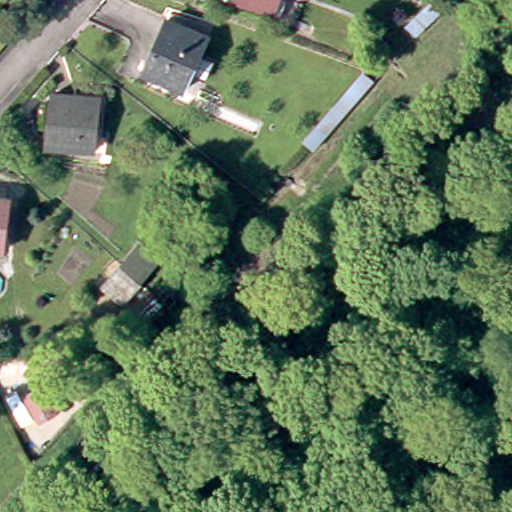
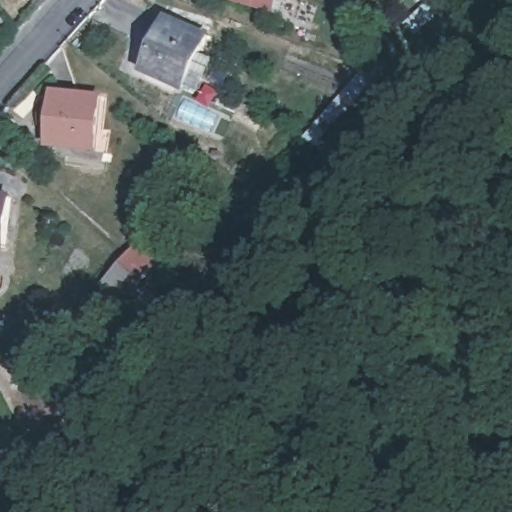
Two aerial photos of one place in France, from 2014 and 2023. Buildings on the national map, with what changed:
unchanged [(253,0),(267,0),(266,4),(253,0)]
unchanged [(196,66),(183,60),(173,79),(149,67),(151,62),(136,54),(159,8),(198,28),(189,47),(202,54),(196,66)]
unchanged [(84,146),(41,140),(48,87),(91,93),(84,146)]
unchanged [(0,226),(0,188),(4,189),(0,226)]

